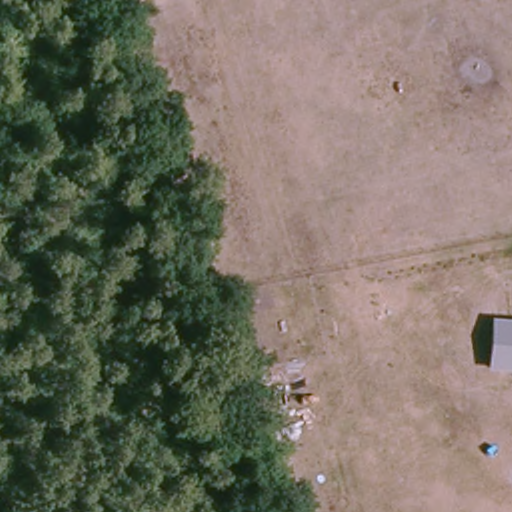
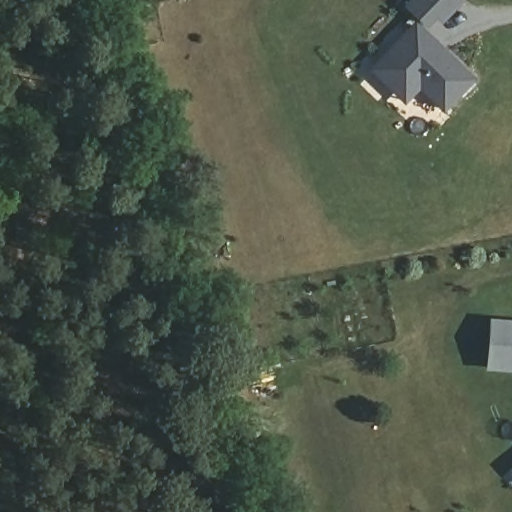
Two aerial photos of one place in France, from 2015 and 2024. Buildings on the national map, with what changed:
new [(440,23),(435,19),(423,30),(475,79),(442,113),(418,90),(405,104),(369,69),(417,24),(401,7),(409,0),(465,0),(440,23)]
unchanged [(512,374),(486,372),(491,319),(512,320),(512,374)]

